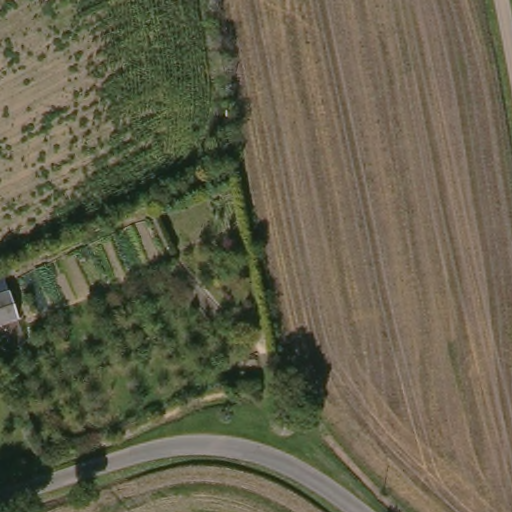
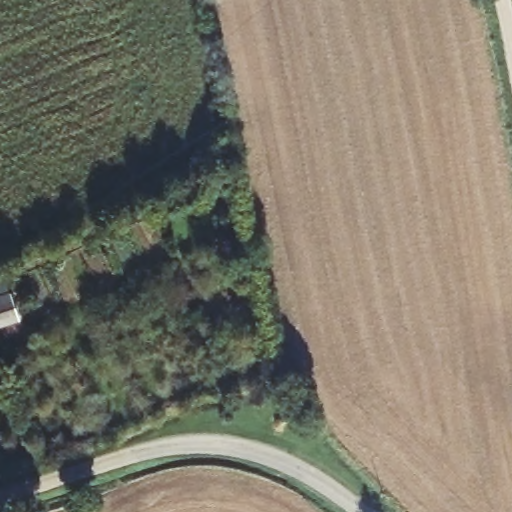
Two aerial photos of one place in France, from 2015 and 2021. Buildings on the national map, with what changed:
unchanged [(4,297),(6,297),(18,321),(0,330),(0,287),(4,297)]

